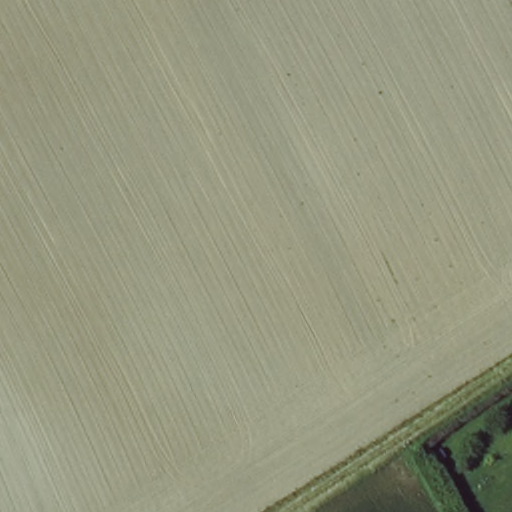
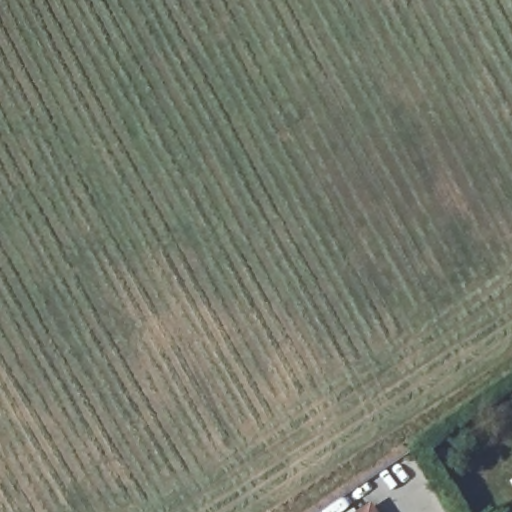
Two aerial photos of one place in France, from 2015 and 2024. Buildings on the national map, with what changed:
new [(377,512),(357,512),(371,503),(377,512)]

